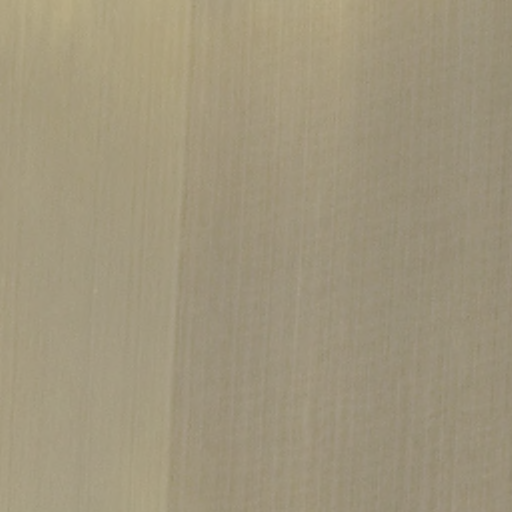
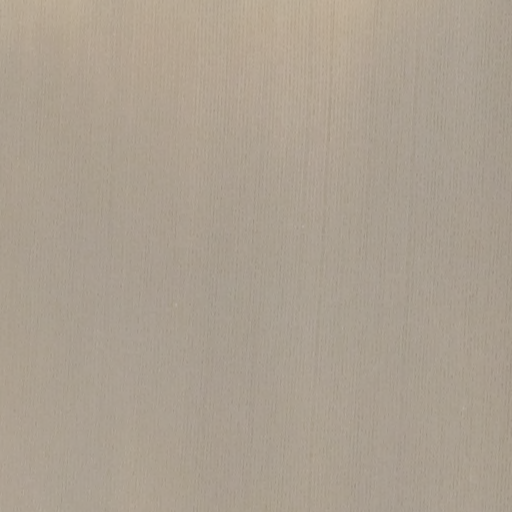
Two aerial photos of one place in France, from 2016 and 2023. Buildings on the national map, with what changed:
[]

